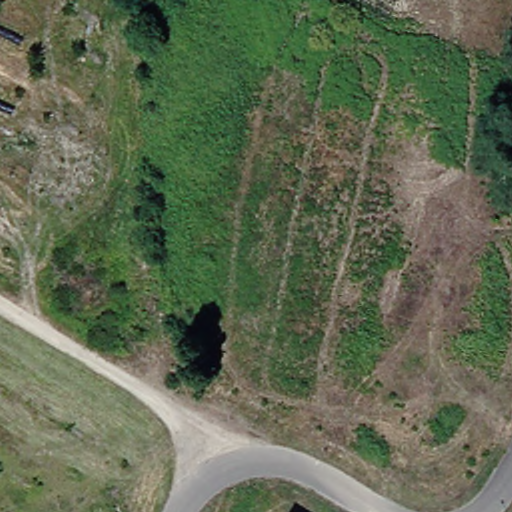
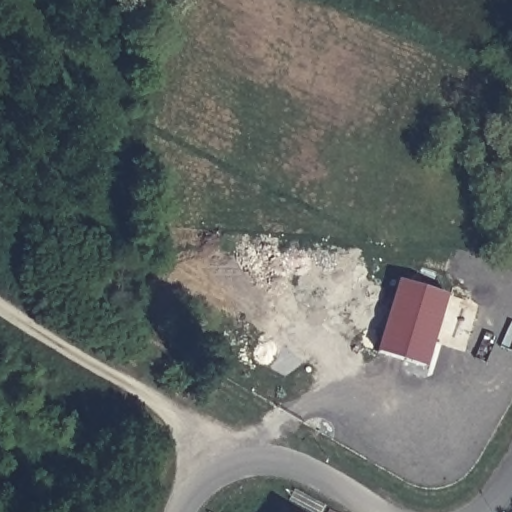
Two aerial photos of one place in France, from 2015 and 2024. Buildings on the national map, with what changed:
new [(403,279),(452,295),(432,363),(382,347),(403,279)]

